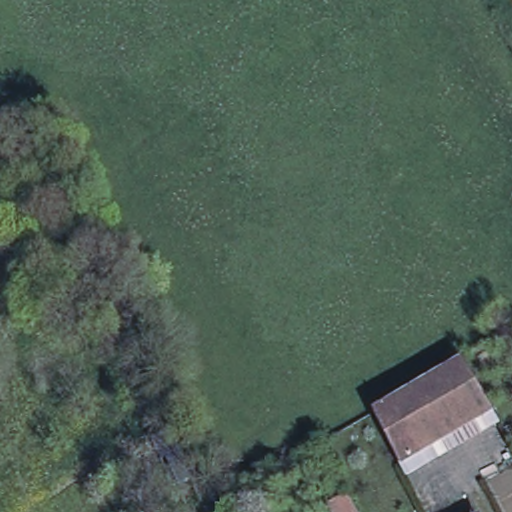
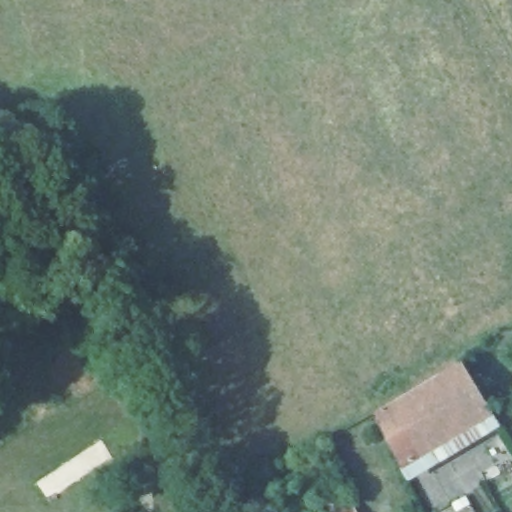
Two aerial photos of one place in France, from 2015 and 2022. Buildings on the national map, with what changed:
unchanged [(465,363),(495,415),(457,437),(428,385),(465,363)]
unchanged [(428,385),(457,437),(426,455),(397,403),(428,385)]
unchanged [(397,403),(426,455),(404,469),(375,416),(397,403)]

